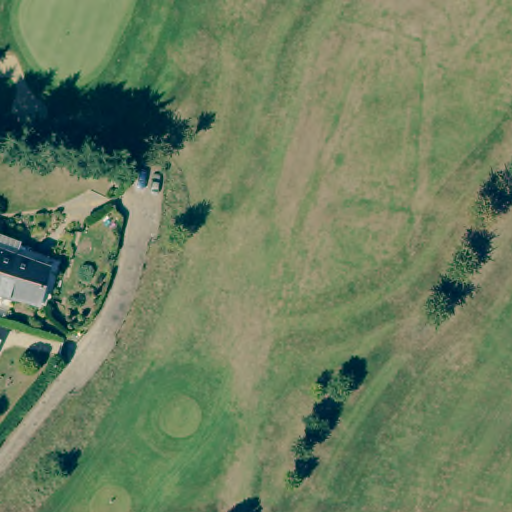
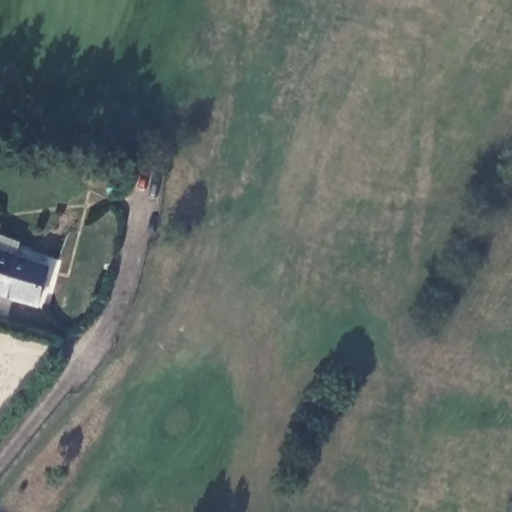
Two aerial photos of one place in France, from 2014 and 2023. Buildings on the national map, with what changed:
unchanged [(0,286),(0,249),(47,261),(36,297),(0,286)]

